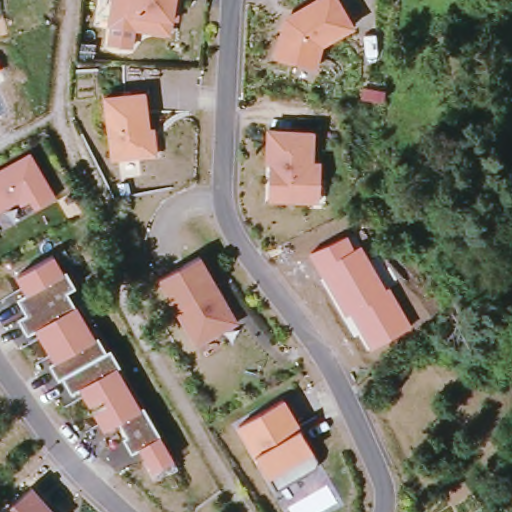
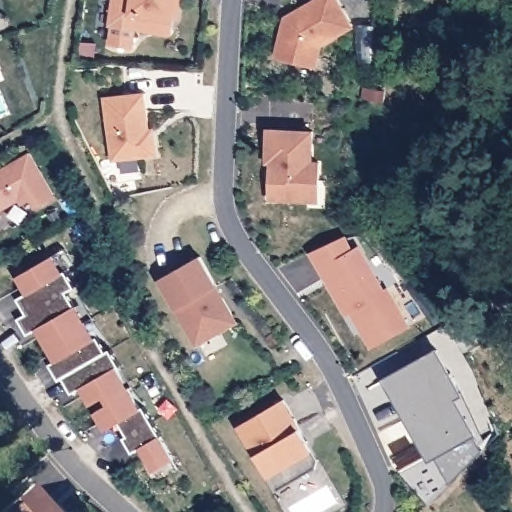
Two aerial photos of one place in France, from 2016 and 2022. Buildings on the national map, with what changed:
unchanged [(172,25),(171,37),(135,32),(133,49),(110,44),(111,30),(109,29),(113,0),(183,0),(179,26),(172,25)]
unchanged [(341,0),(357,28),(324,48),(319,68),(276,56),(284,18),(314,0),(341,0)]
unchanged [(151,128),(155,128),(158,156),(113,162),(104,97),(147,92),(151,128)]
unchanged [(319,130),(318,161),(323,162),(321,204),(271,203),(272,165),(266,165),(268,128),(319,130)]
unchanged [(38,212),(33,204),(23,209),(19,204),(0,214),(0,170),(31,153),(58,199),(38,212)]
unchanged [(351,314),(346,315),(310,254),(346,237),(354,249),(361,245),(386,289),(389,288),(412,325),(370,349),(351,314)]
unchanged [(75,287),(68,293),(96,340),(99,339),(107,354),(115,350),(124,369),(121,371),(143,409),(146,408),(176,465),(155,476),(139,450),(132,455),(124,443),(128,439),(122,427),(105,434),(83,392),(73,397),(63,379),(60,382),(51,367),(56,364),(36,331),(29,336),(20,321),(29,315),(20,301),(28,297),(18,279),(56,256),(75,287)]
unchanged [(239,323),(196,348),(159,280),(202,258),(239,323)]
new [(439,349),(463,393),(456,397),(477,433),(437,456),(429,459),(413,431),(419,427),(413,415),(411,417),(388,378),(439,349)]
unchanged [(318,456),(316,468),(278,489),(238,426),(286,400),(318,456)]
new [(477,433),(488,454),(454,486),(437,456),(477,433)]
unchanged [(33,488),(56,512),(3,512),(33,488)]

